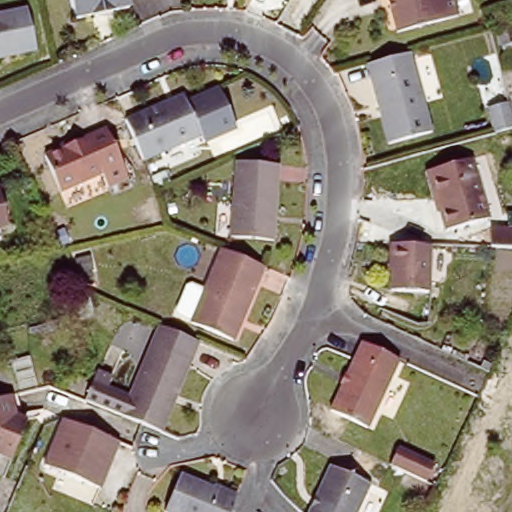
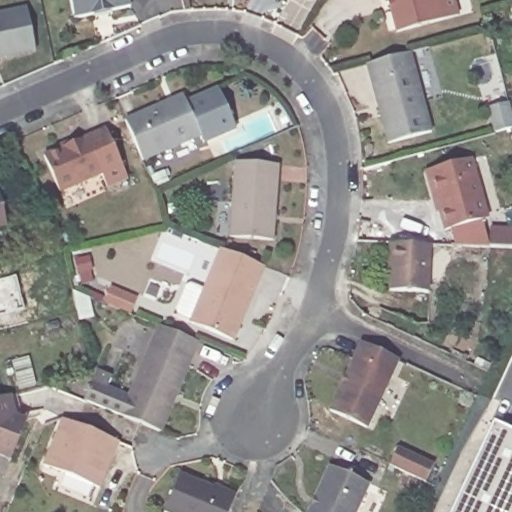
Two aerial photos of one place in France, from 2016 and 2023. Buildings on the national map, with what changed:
unchanged [(107,13),(106,10),(89,13),(90,18),(73,21),(68,0),(127,0),(128,8),(107,13)]
unchanged [(382,0),(448,0),(452,16),(391,33),(382,0)]
unchanged [(0,56),(0,14),(28,8),(37,48),(0,56)]
unchanged [(388,140),(367,61),(410,49),(430,129),(388,140)]
unchanged [(200,139),(196,131),(139,156),(122,116),(180,92),(182,100),(215,85),(232,125),(200,139)]
demolished [(488,103),(507,98),(512,115),(512,124),(494,128),(488,103)]
unchanged [(108,184),(102,171),(62,188),(46,152),(106,126),(127,176),(108,184)]
unchanged [(446,225),(438,195),(433,196),(425,168),(469,155),(487,213),(446,225)]
unchanged [(229,233),(235,158),(276,161),(269,237),(229,233)]
unchanged [(0,221),(0,192),(7,220),(0,221)]
demolished [(487,227),(512,228),(512,245),(486,244),(487,227)]
unchanged [(389,286),(393,239),(432,241),(428,289),(389,286)]
unchanged [(195,321),(196,318),(182,312),(180,308),(191,284),(195,282),(210,288),(227,249),(268,266),(236,339),(195,321)]
unchanged [(102,383),(137,397),(165,327),(203,343),(167,432),(148,425),(128,417),(95,402),(102,383)]
unchanged [(330,407),(360,337),(398,354),(366,424),(330,407)]
unchanged [(0,449),(0,396),(9,394),(13,410),(25,415),(9,453),(0,449)]
unchanged [(45,460),(65,414),(119,437),(99,482),(45,460)]
new [(512,430),(512,512),(452,512),(495,422),(512,430)]
unchanged [(386,459),(395,441),(406,446),(431,458),(422,475),(397,463),(386,459)]
unchanged [(333,466),(370,483),(357,512),(311,512),(333,466)]
unchanged [(228,512),(178,512),(166,508),(182,471),(237,492),(228,512)]

